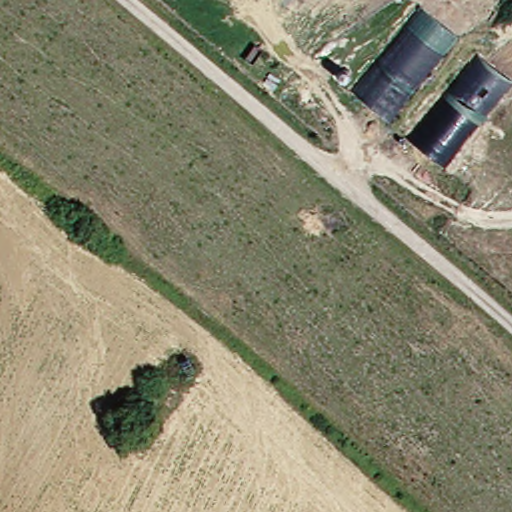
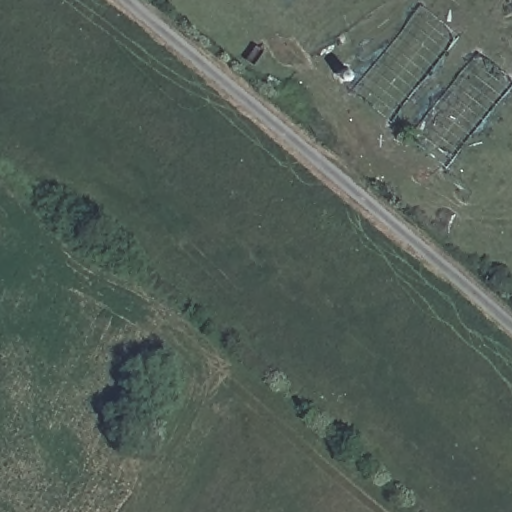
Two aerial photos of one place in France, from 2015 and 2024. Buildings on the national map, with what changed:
unchanged [(417,3),(455,31),(395,123),(356,91),(417,3)]
unchanged [(475,51),(511,82),(447,165),(410,139),(475,51)]

